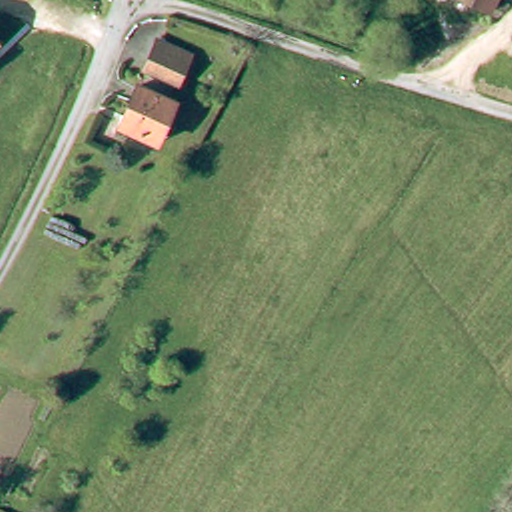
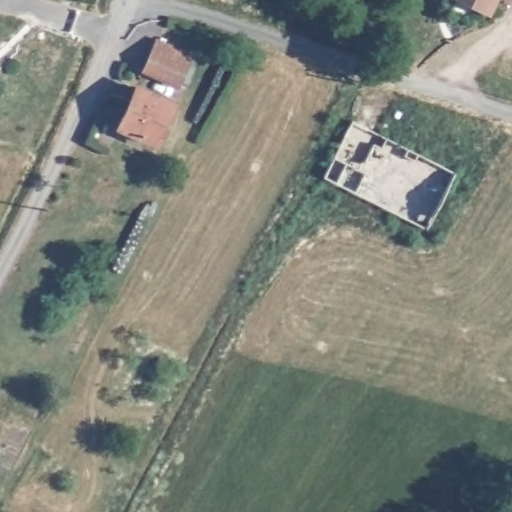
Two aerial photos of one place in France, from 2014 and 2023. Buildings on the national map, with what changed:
unchanged [(464,0),(490,0),(485,10),(464,0)]
unchanged [(179,84),(144,69),(157,40),(191,53),(179,84)]
demolished [(512,68),(512,98),(501,93),(512,68)]
unchanged [(157,147),(118,132),(133,90),(173,105),(157,147)]
new [(354,120),(409,149),(406,155),(415,160),(418,154),(456,173),(426,229),(324,176),(354,120)]
demolished [(78,259),(44,243),(55,216),(88,233),(78,259)]

